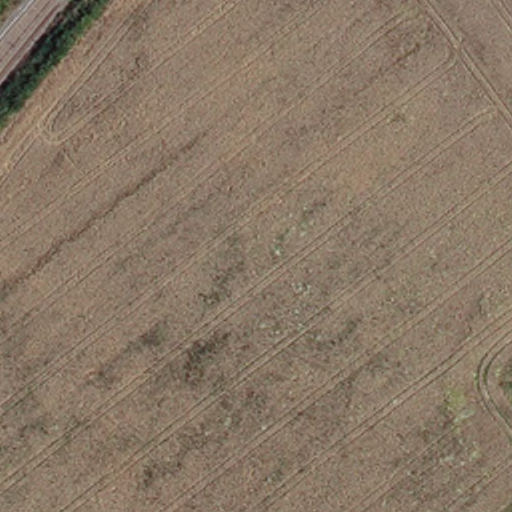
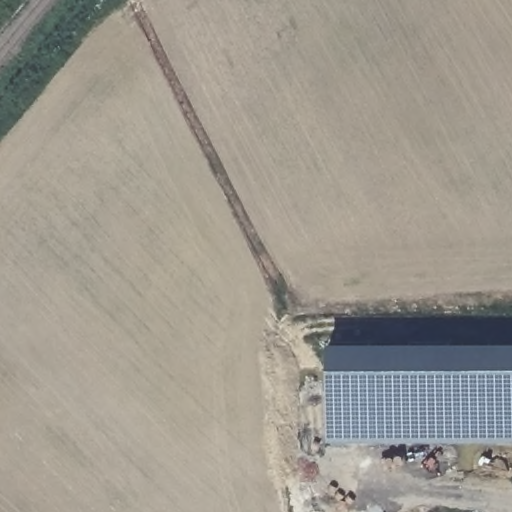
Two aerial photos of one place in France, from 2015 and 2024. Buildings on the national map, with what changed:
new [(325,347),(512,347),(512,445),(325,446),(325,347)]

